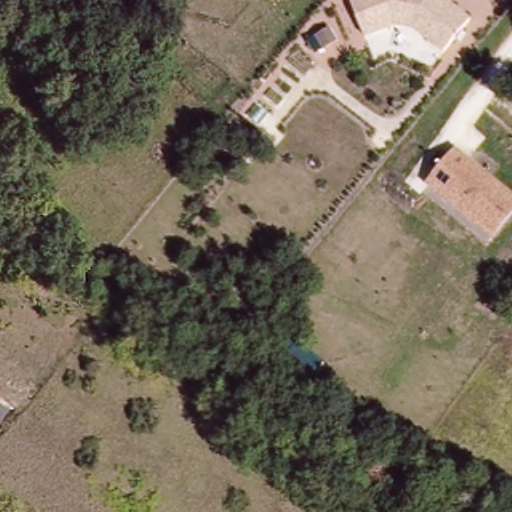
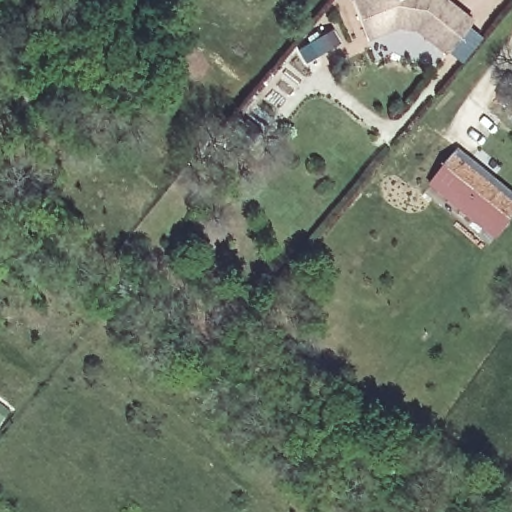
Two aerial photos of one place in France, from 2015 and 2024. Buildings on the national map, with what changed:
unchanged [(444,49),(415,24),(397,21),(366,33),(354,0),(450,0),(470,17),(444,49)]
unchanged [(461,149),(512,194),(512,226),(497,245),(428,189),(461,149)]

